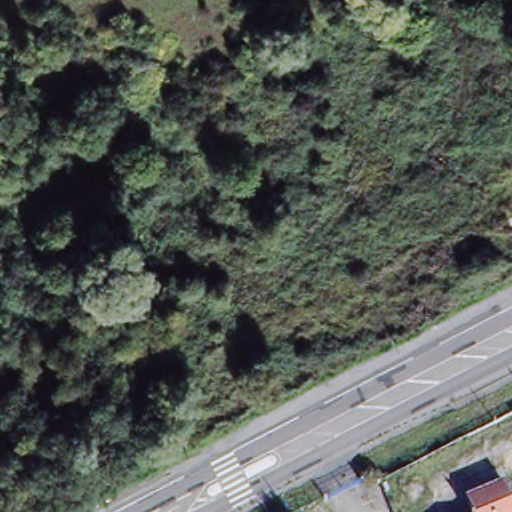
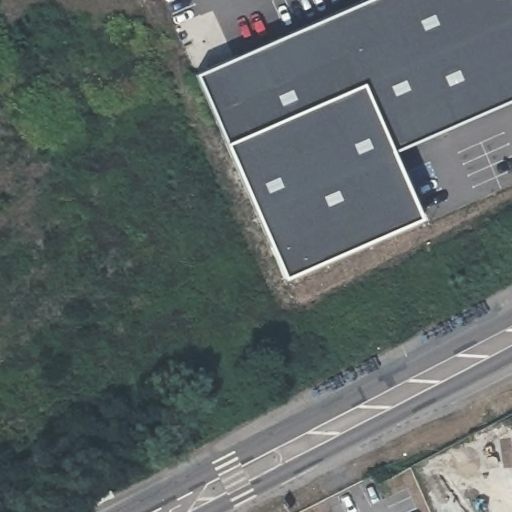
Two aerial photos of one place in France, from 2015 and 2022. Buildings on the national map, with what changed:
new [(283,280),(224,145),(194,76),(368,0),(512,0),(512,101),(392,151),(421,221),(283,280)]
demolished [(512,498),(512,512),(475,512),(469,498),(506,483),(512,498)]

